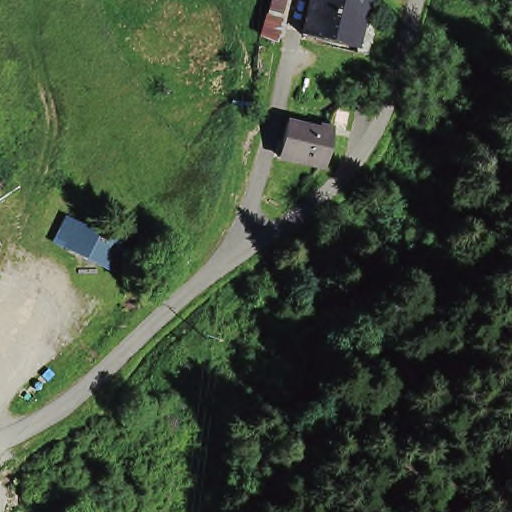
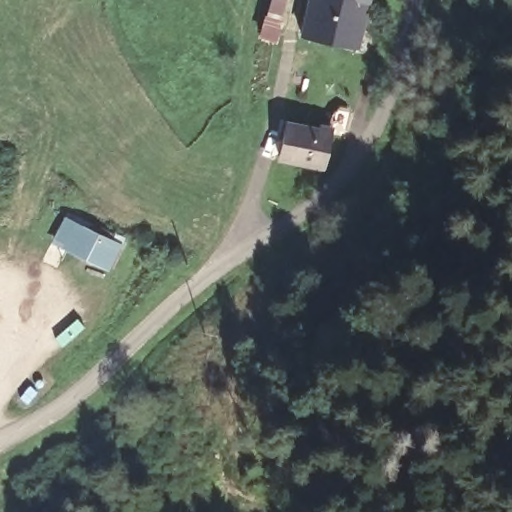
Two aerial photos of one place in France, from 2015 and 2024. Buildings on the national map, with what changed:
unchanged [(354,45),(297,33),(304,0),(364,0),(354,45)]
unchanged [(315,170),(271,160),(278,125),(323,135),(315,170)]
unchanged [(117,275),(113,272),(73,253),(61,247),(71,229),(82,235),(101,245),(106,235),(120,241),(115,251),(122,255),(126,257),(117,275)]

